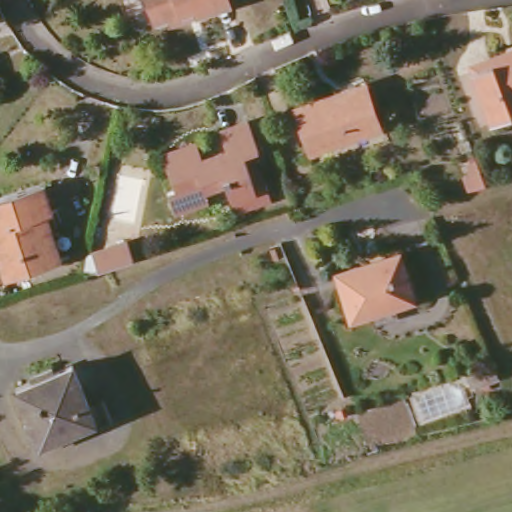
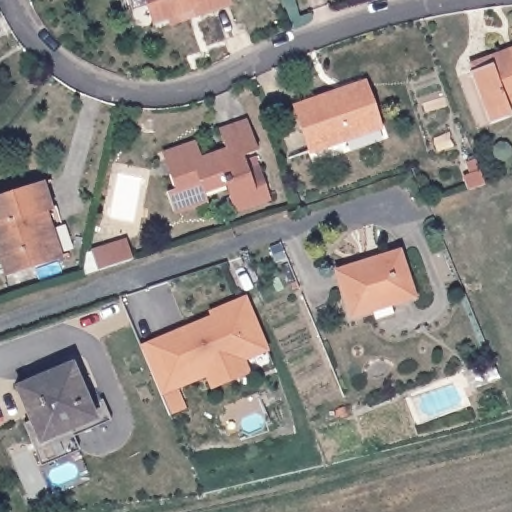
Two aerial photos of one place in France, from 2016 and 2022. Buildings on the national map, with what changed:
unchanged [(162,21),(154,23),(146,0),(231,0),(232,4),(196,16),(172,24),(170,19),(162,21)]
unchanged [(512,115),(490,123),(472,71),(512,57),(512,103),(509,104),(512,115)]
unchanged [(382,128),(312,151),(297,106),(338,92),(365,82),(367,90),(368,90),(382,128)]
unchanged [(231,198),(235,196),(232,183),(207,192),(209,202),(175,214),(168,192),(175,190),(170,176),(165,178),(158,156),(175,151),(198,143),(203,158),(221,153),(222,156),(229,154),(221,131),(250,121),(259,150),(246,154),(251,171),(262,168),(272,197),(235,210),(231,198)]
unchanged [(470,175),(477,173),(473,161),(482,158),(487,169),(492,183),(475,189),(470,175)]
unchanged [(44,206),(45,212),(40,213),(52,253),(6,269),(0,251),(0,193),(45,178),(52,204),(44,206)]
unchanged [(93,253),(102,250),(129,242),(135,261),(120,265),(109,269),(107,270),(99,272),(93,253)]
unchanged [(353,316),(339,271),(399,252),(414,298),(353,316)]
new [(246,360),(250,374),(209,390),(204,378),(177,389),(185,409),(172,415),(140,345),(210,317),(207,311),(247,294),(269,351),(246,360)]
unchanged [(41,442),(17,388),(73,365),(95,418),(41,442)]

